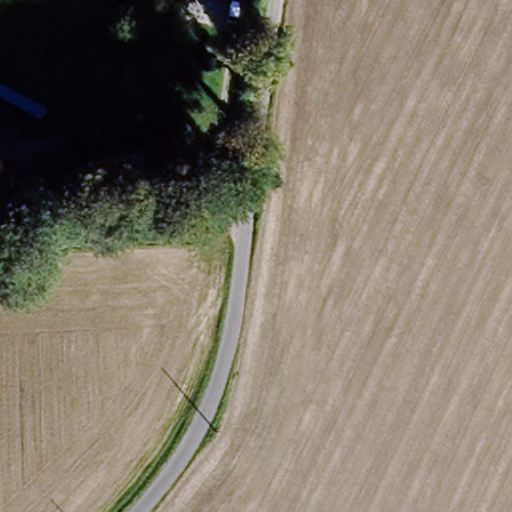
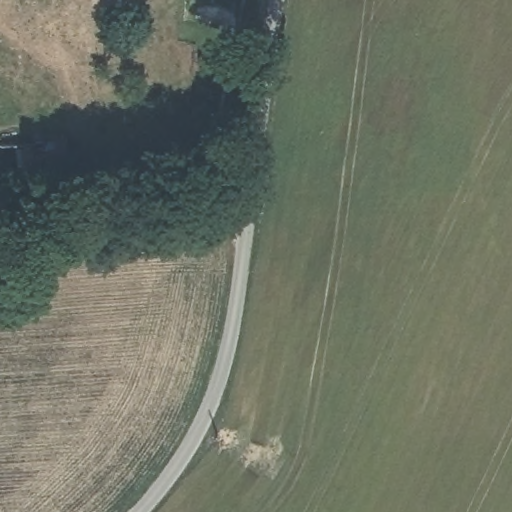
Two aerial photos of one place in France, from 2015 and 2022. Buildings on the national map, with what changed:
unchanged [(16,178),(12,145),(59,141),(62,173),(16,178)]
unchanged [(0,146),(12,145),(16,178),(0,179),(0,146)]

